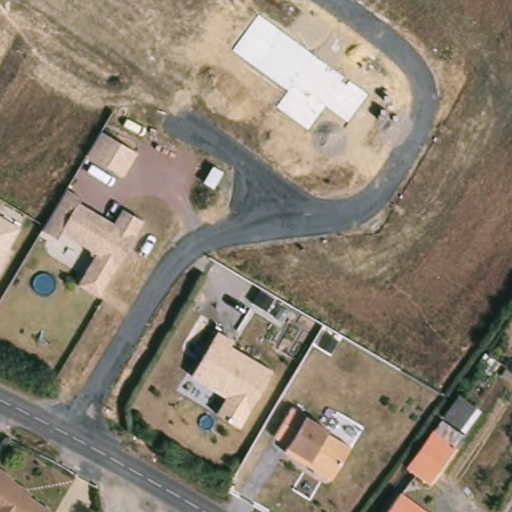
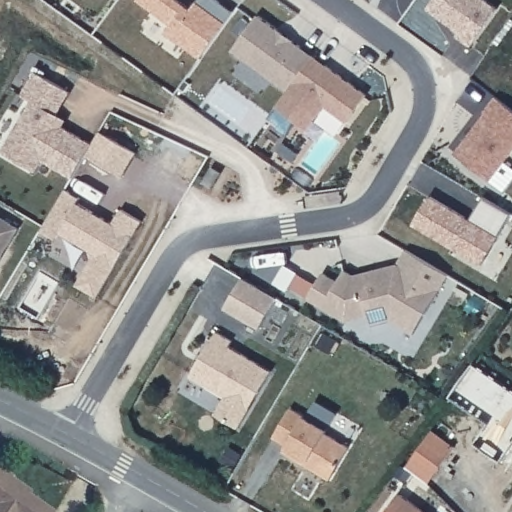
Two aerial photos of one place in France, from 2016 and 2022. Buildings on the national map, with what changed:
new [(206,0),(229,0),(243,10),(210,56),(175,31),(181,22),(150,0),(190,0),(201,7),(206,0)]
new [(488,0),(501,9),(473,47),(460,36),(462,32),(431,9),(437,0),(488,0)]
new [(267,13),(323,54),(297,89),(242,49),(267,13)]
new [(297,89),(323,54),(377,93),(357,121),(335,104),(317,128),(286,105),(297,89)]
new [(37,171),(5,150),(32,100),(24,95),(37,72),(71,92),(58,114),(67,119),(65,126),(91,142),(72,177),(43,160),(37,171)]
new [(490,116),(488,115),(501,99),(512,108),(512,159),(495,182),(460,155),(490,116)]
unchanged [(95,151),(107,130),(144,151),(131,175),(94,153),(95,151)]
unchanged [(89,196),(86,201),(121,222),(130,207),(150,219),(106,295),(85,283),(100,258),(97,247),(68,231),(58,233),(49,228),(51,226),(52,224),(74,187),(89,196)]
new [(433,197),(473,220),(487,197),(512,212),(512,220),(485,266),(417,225),(433,197)]
unchanged [(0,272),(0,211),(27,227),(0,272)]
new [(401,325),(392,321),(374,325),(372,316),(349,322),(310,298),(326,273),(341,282),(347,271),(356,276),(379,270),(387,275),(393,273),(392,267),(401,265),(409,250),(452,276),(421,327),(416,335),(401,325)]
new [(245,278),(280,298),(262,329),(227,308),(245,278)]
unchanged [(216,416),(226,398),(190,377),(216,333),(232,342),(229,348),(271,373),(238,428),(216,416)]
unchanged [(459,395),(481,412),(451,447),(432,433),(459,395)]
unchanged [(287,450),(291,443),(277,435),(294,406),(331,427),(329,431),(352,445),(333,477),(287,450)]
unchanged [(451,447),(426,482),(406,466),(432,433),(451,447)]
unchanged [(0,466),(14,476),(10,482),(29,495),(31,493),(56,512),(0,512),(0,466)]
unchanged [(426,512),(384,512),(397,492),(426,512)]

